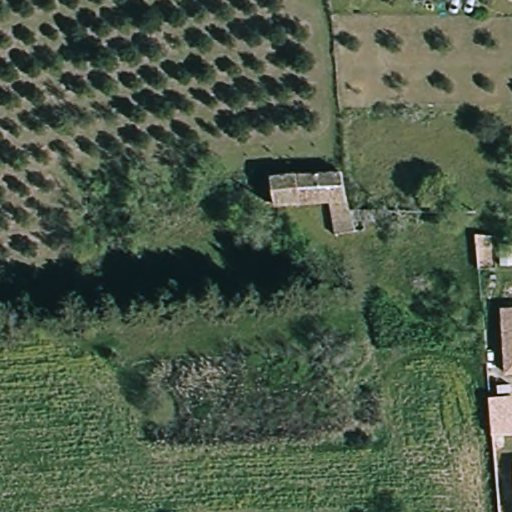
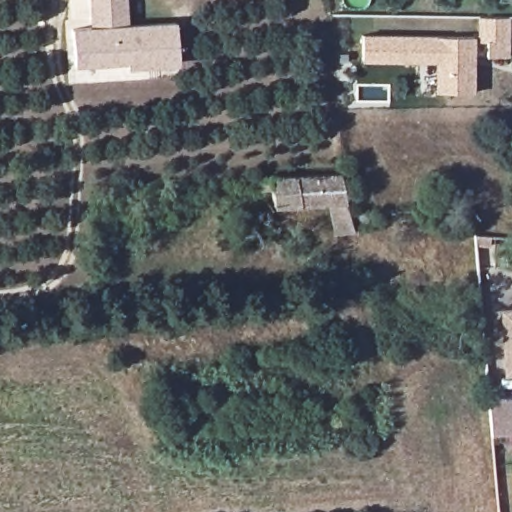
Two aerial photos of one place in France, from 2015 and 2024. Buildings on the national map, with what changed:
new [(177,21),(180,66),(128,70),(128,64),(75,68),(71,29),(91,26),(89,0),(128,0),(130,25),(177,21)]
new [(509,56),(487,55),(487,40),(477,40),(477,15),(509,16),(509,56)]
new [(474,93),(435,92),(434,62),(362,61),(362,34),(475,36),(474,93)]
unchanged [(351,227),(351,237),(330,237),(329,205),(275,205),(274,189),(262,189),(261,173),(345,171),(349,211),(372,211),(371,227),(351,227)]
unchanged [(509,310),(512,311),(512,376),(507,376),(509,310)]
unchanged [(512,431),(497,431),(497,407),(512,407),(512,431)]

